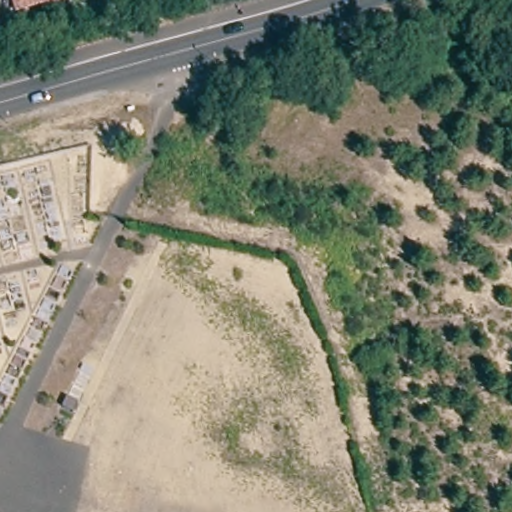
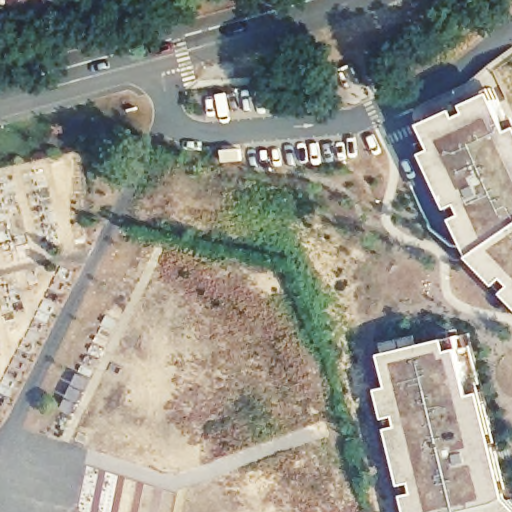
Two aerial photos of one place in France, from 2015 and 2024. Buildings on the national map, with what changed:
unchanged [(61,0),(21,11),(18,0),(61,0)]
new [(428,152),(423,143),(432,136),(426,122),(497,90),(510,118),(512,118),(512,294),(475,255),(428,152)]
new [(380,387),(379,376),(387,368),(383,353),(448,337),(459,335),(469,334),(484,391),(509,496),(512,500),(512,512),(410,512),(380,387)]

